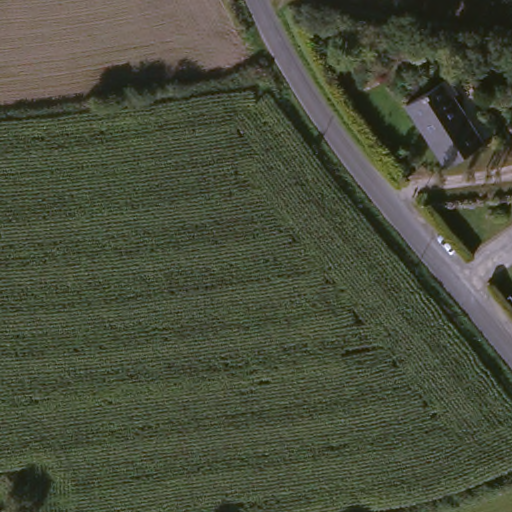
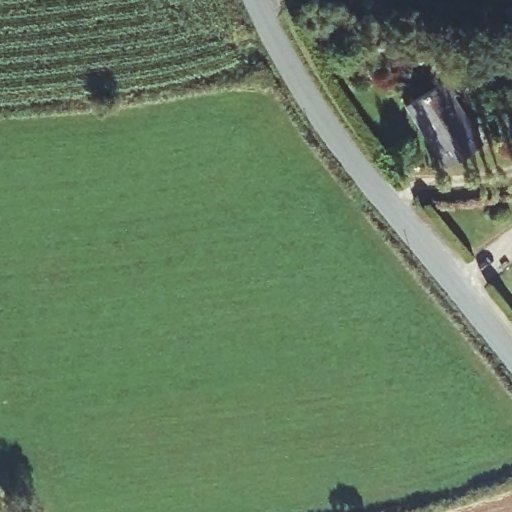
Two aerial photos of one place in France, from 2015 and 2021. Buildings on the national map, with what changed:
unchanged [(445,90),(455,105),(450,110),(477,155),(441,177),(402,116),(445,90)]

